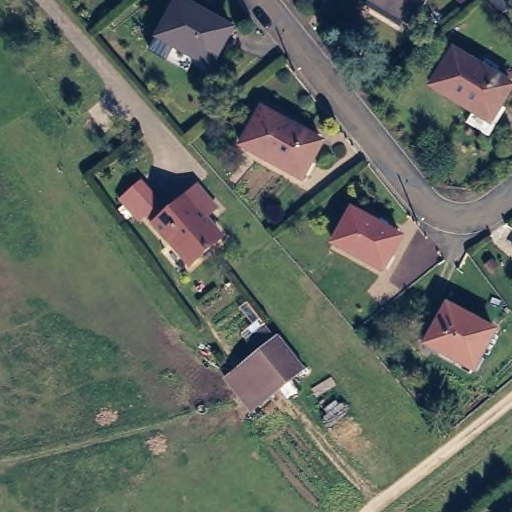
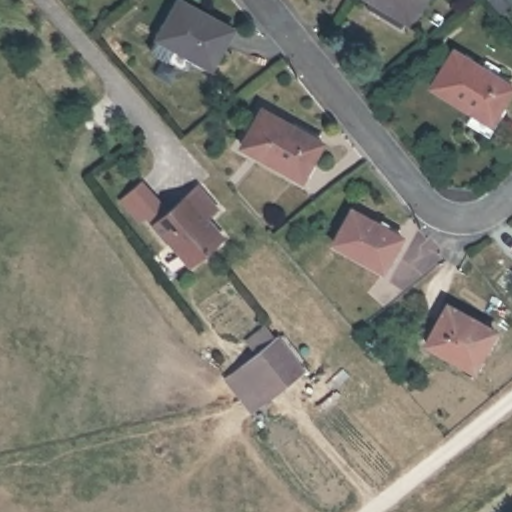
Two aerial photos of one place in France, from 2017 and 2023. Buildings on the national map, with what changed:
unchanged [(183,62),(156,48),(164,32),(163,32),(181,0),(193,0),(237,25),(215,63),(211,61),(207,66),(187,55),(183,62)]
unchanged [(412,12),(404,27),(374,8),(378,0),(425,0),(416,14),(412,12)]
unchanged [(509,0),(497,10),(489,0),(509,0)]
unchanged [(435,89),(459,50),(512,84),(512,96),(495,126),(435,89)]
unchanged [(326,144),(307,180),(246,148),(267,111),(326,144)]
unchanged [(154,230),(180,207),(196,194),(217,216),(206,225),(221,244),(214,250),(189,272),(154,230)]
unchanged [(337,239),(356,206),(406,233),(388,265),(337,239)]
unchanged [(425,341),(447,301),(494,328),(474,367),(425,341)]
unchanged [(245,402),(229,380),(274,344),(298,376),(254,413),(245,402)]

